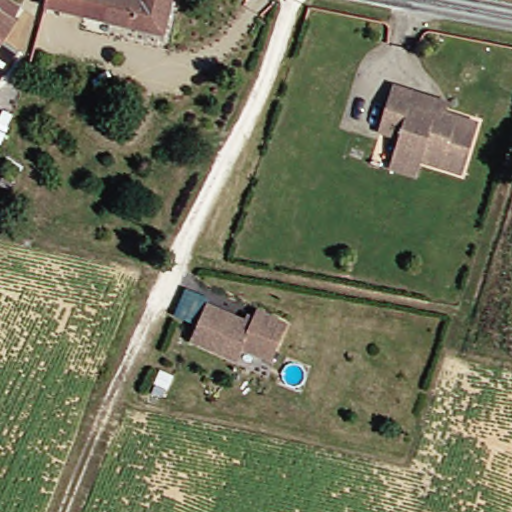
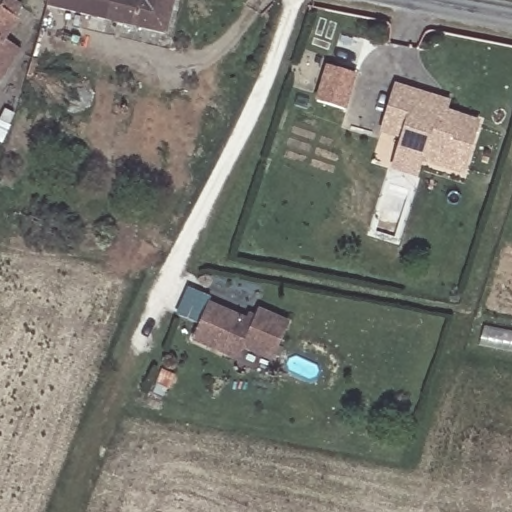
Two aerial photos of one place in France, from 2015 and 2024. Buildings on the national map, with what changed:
unchanged [(22,18),(8,38),(25,49),(12,68),(4,80),(0,77),(0,0),(26,0),(22,18)]
unchanged [(54,0),(183,0),(176,35),(52,7),(54,0)]
new [(326,65),(358,75),(347,111),(315,101),(326,65)]
unchanged [(419,100),(482,120),(467,168),(403,148),(407,135),(386,128),(400,84),(422,91),(419,100)]
unchanged [(253,316),(259,319),(262,311),(293,324),(277,361),(248,349),(242,363),(196,343),(202,327),(212,306),(225,311),(250,322),(253,316)]

